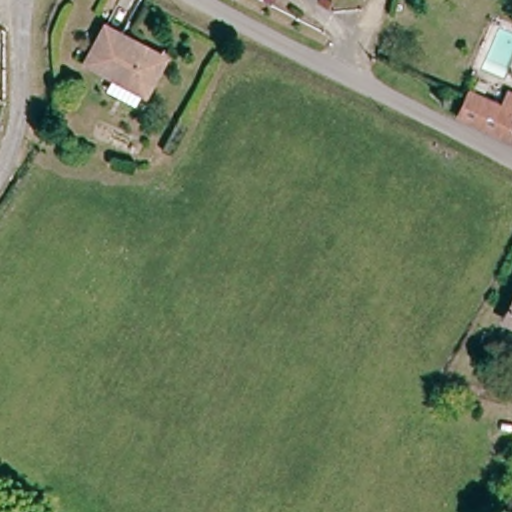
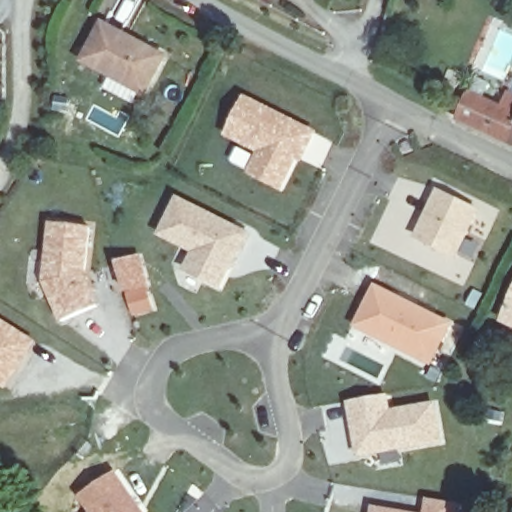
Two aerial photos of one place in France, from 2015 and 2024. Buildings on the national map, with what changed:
unchanged [(167,53),(146,92),(85,64),(104,24),(167,53)]
unchanged [(455,118),(466,99),(469,93),(512,115),(512,144),(455,118)]
new [(246,175),(258,153),(225,136),(246,95),(319,131),(302,164),(297,162),(282,193),(246,175)]
new [(439,188),(482,211),(468,240),(481,246),(475,258),(461,251),(457,260),(415,238),(439,188)]
new [(183,271),(191,253),(156,235),(177,195),(254,234),(243,254),(240,253),(221,292),(183,271)]
new [(61,322),(44,283),(50,223),(91,228),(86,276),(100,306),(61,322)]
new [(126,293),(117,262),(142,256),(151,287),(148,288),(155,310),(132,316),(126,293)]
new [(375,284),(454,324),(432,367),(354,327),(375,284)]
unchanged [(502,325),(512,305),(512,330),(502,325)]
new [(5,390),(0,387),(0,316),(40,340),(5,390)]
new [(348,401),(390,394),(392,409),(436,401),(444,443),(358,458),(348,401)]
new [(79,496),(116,471),(145,512),(89,512),(79,496)]
new [(426,499),(460,505),(459,512),(423,512),(426,499)]
new [(372,506),(410,512),(372,512),(372,506)]

